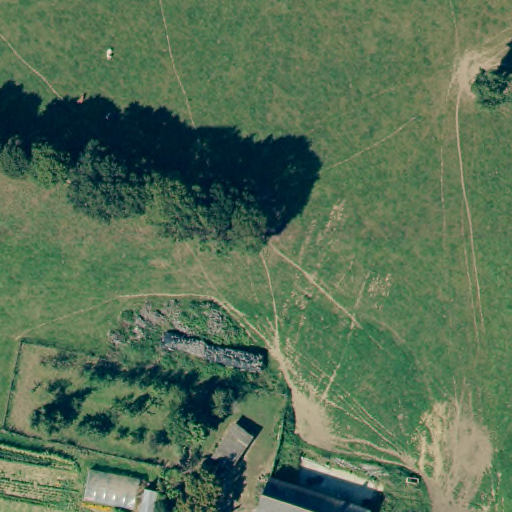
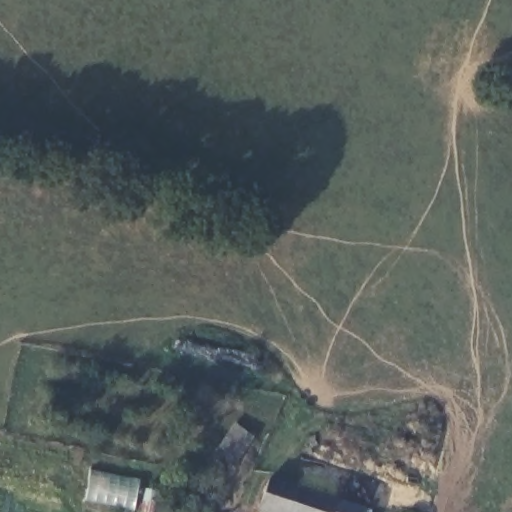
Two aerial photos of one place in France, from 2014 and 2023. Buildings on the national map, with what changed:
unchanged [(250,437),(228,468),(212,457),(233,425),(250,437)]
unchanged [(367,510),(366,512),(259,512),(268,480),(367,510)]

